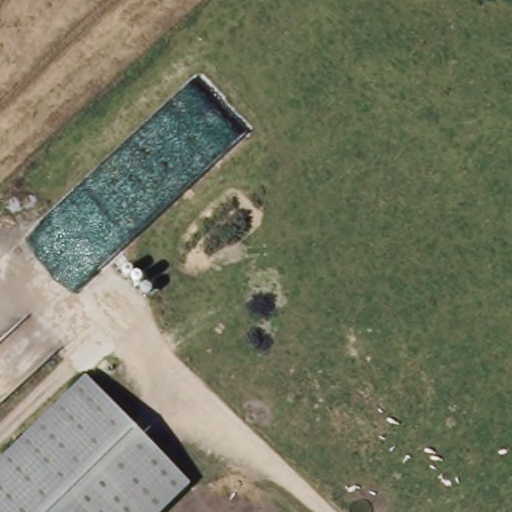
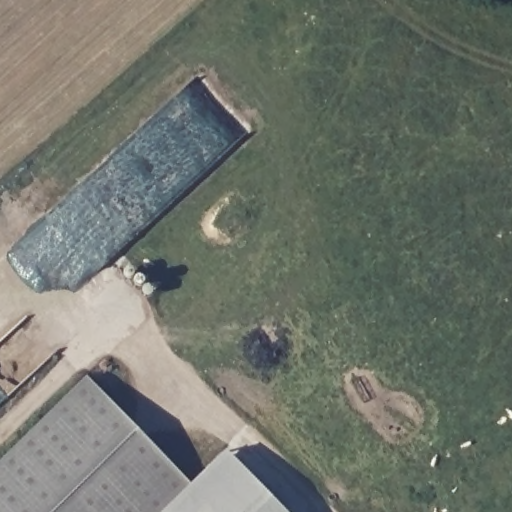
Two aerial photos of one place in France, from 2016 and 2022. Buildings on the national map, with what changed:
unchanged [(187,485),(160,512),(0,512),(0,460),(84,378),(114,410),(187,485)]
new [(289,512),(160,512),(187,485),(191,486),(227,450),(289,512)]

